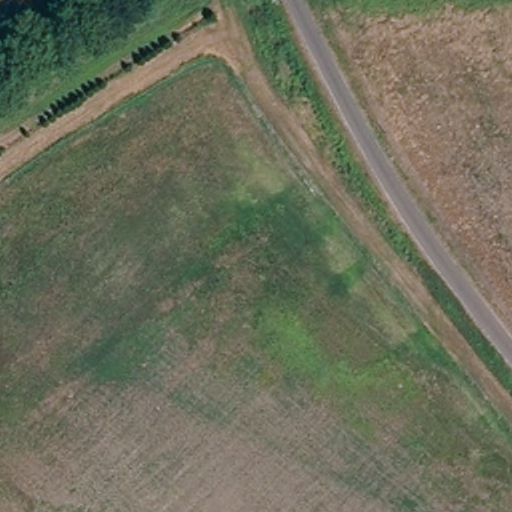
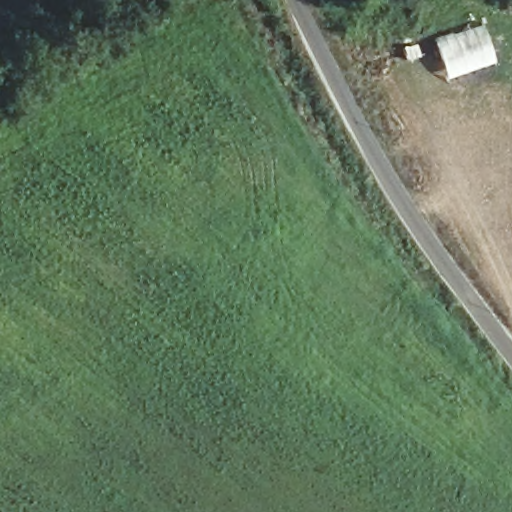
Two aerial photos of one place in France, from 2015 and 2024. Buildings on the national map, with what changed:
new [(482,24),(495,63),(447,79),(433,39),(482,24)]

